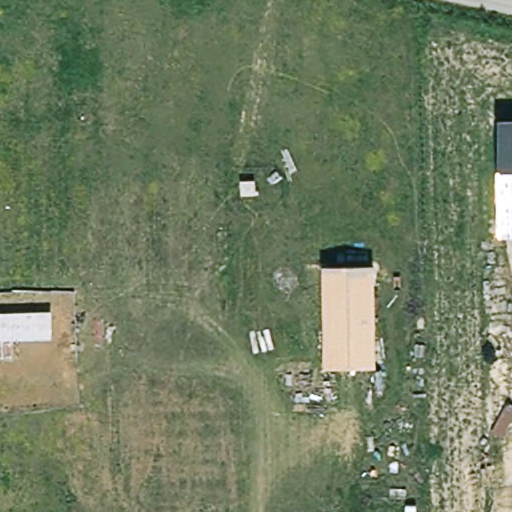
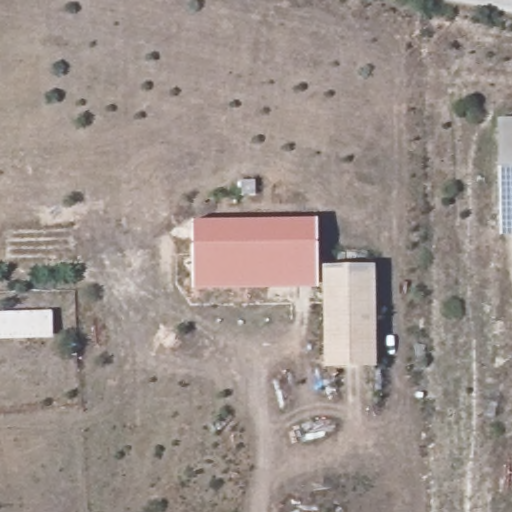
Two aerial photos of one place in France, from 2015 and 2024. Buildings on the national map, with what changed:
unchanged [(502,124),(512,123),(512,223),(503,224),(502,124)]
new [(316,222),(317,289),(192,290),(192,223),(316,222)]
unchanged [(504,238),(503,224),(512,223),(512,238),(504,238)]
unchanged [(325,369),(324,268),(374,268),(375,368),(325,369)]
new [(0,313),(50,311),(51,339),(0,341),(0,313)]
new [(494,496),(512,496),(512,512),(493,512),(494,496)]

